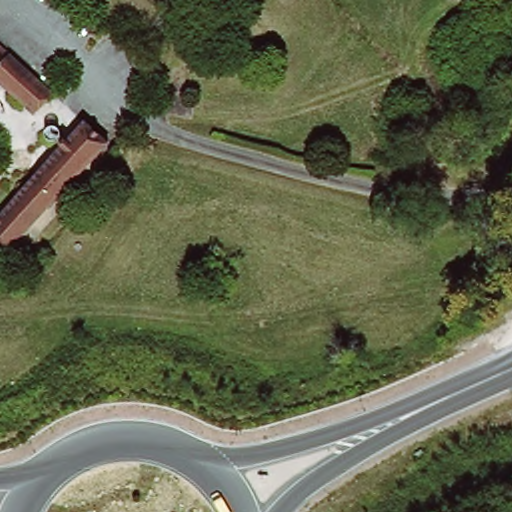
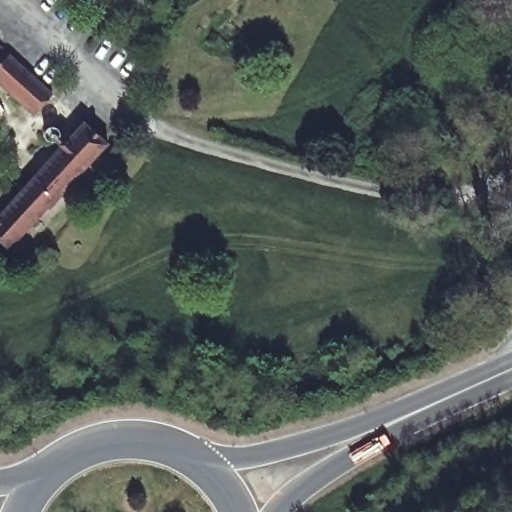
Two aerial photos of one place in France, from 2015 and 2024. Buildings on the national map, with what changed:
unchanged [(36,116),(0,85),(0,49),(53,95),(36,116)]
unchanged [(0,248),(0,213),(82,125),(105,147),(45,211),(41,209),(3,250),(0,248)]

